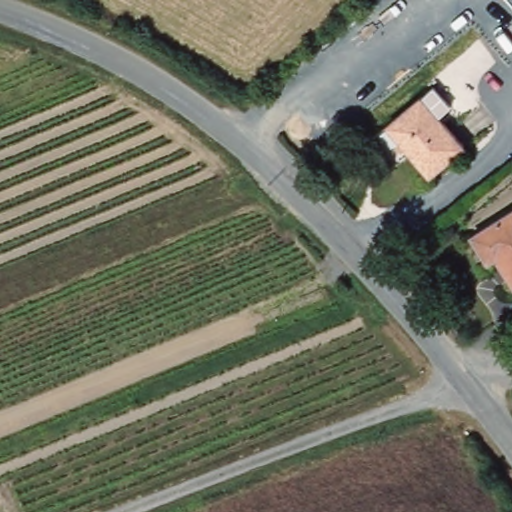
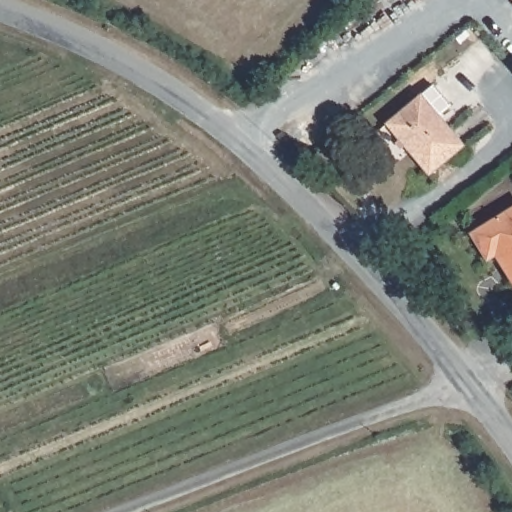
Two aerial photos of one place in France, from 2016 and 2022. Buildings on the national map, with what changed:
unchanged [(420,91),(464,143),(431,172),(387,121),(420,91)]
unchanged [(512,209),(512,273),(498,254),(489,259),(472,234),(512,209)]

